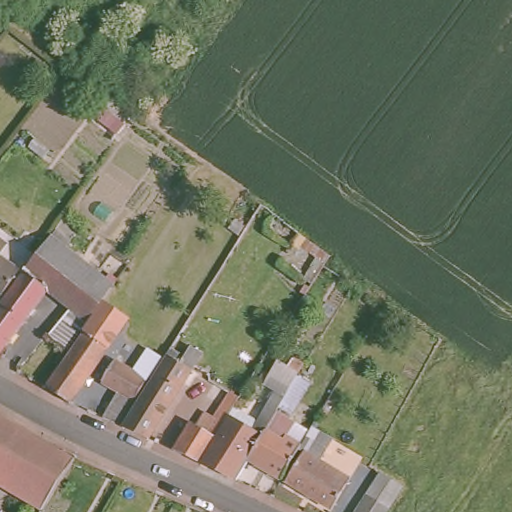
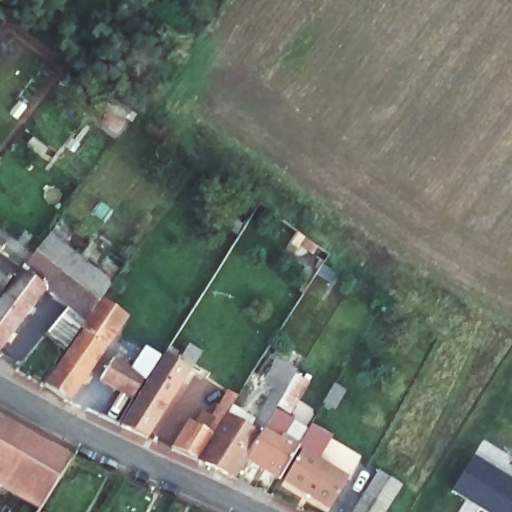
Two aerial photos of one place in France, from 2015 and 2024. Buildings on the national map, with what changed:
unchanged [(52,236),(115,285),(105,302),(85,330),(71,350),(52,336),(71,308),(49,288),(0,357),(0,311),(14,293),(52,236)]
unchanged [(10,253),(6,250),(2,255),(22,270),(4,294),(0,291),(0,238),(14,249),(10,253)]
unchanged [(88,331),(85,330),(105,302),(130,320),(76,399),(75,401),(50,385),(88,331)]
unchanged [(182,338),(205,352),(152,438),(127,426),(182,338)]
unchanged [(124,389),(107,379),(120,357),(153,377),(124,425),(107,418),(124,389)]
unchanged [(204,411),(211,416),(227,390),(237,397),(232,403),(256,420),(262,410),(274,389),(258,378),(263,369),(267,371),(277,358),(297,372),(295,374),(286,390),(281,398),(262,431),(247,456),(246,458),(237,472),(234,478),(197,460),(171,448),(189,420),(195,425),(204,411)]
unchanged [(247,456),(262,431),(281,398),(286,390),(295,374),(308,382),(288,416),(293,420),(285,433),(300,443),(297,448),(283,473),(280,478),(246,458),(247,456)]
unchanged [(77,452),(45,505),(0,478),(0,409),(2,410),(77,452)]
unchanged [(332,435),(326,443),(315,458),(347,479),(330,509),(284,480),(302,451),(297,448),(300,443),(312,422),(332,435)]
new [(483,512),(452,493),(475,457),(512,480),(512,512),(483,512)]
unchanged [(379,500),(392,479),(400,484),(382,512),(352,512),(365,492),(379,500)]

